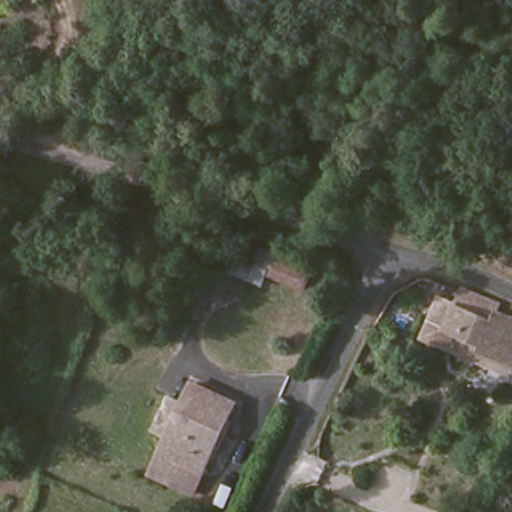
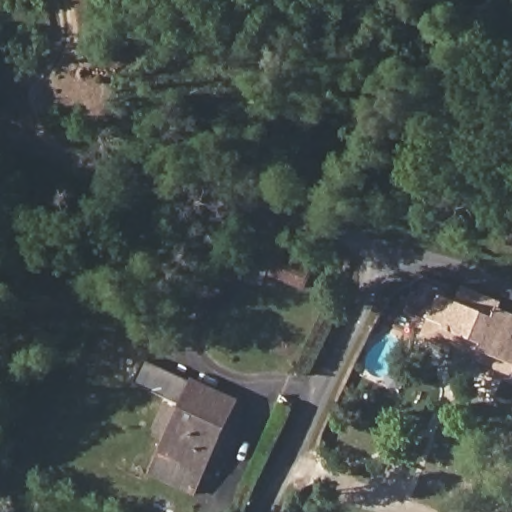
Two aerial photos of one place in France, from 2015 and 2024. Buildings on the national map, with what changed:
unchanged [(290,286),(249,266),(258,248),(299,268),(290,286)]
unchanged [(495,321),(512,330),(512,375),(476,361),(479,353),(440,335),(457,300),(496,317),(495,321)]
unchanged [(202,383),(213,388),(244,402),(212,470),(170,450),(175,441),(202,383)]

